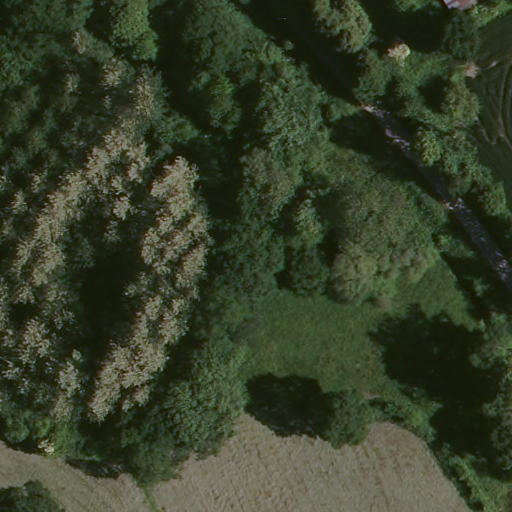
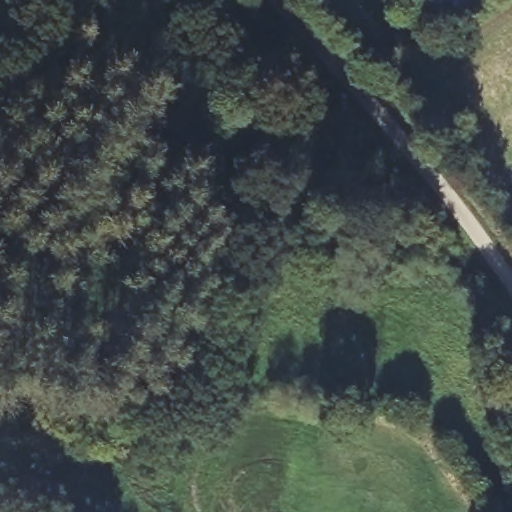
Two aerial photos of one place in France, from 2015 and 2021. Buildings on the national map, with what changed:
unchanged [(444,0),(485,0),(456,19),(444,0)]

